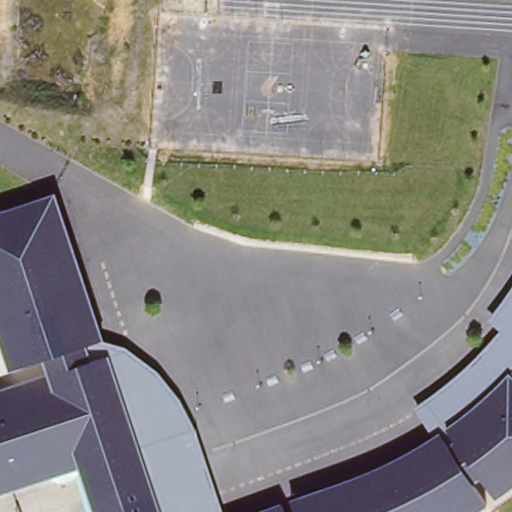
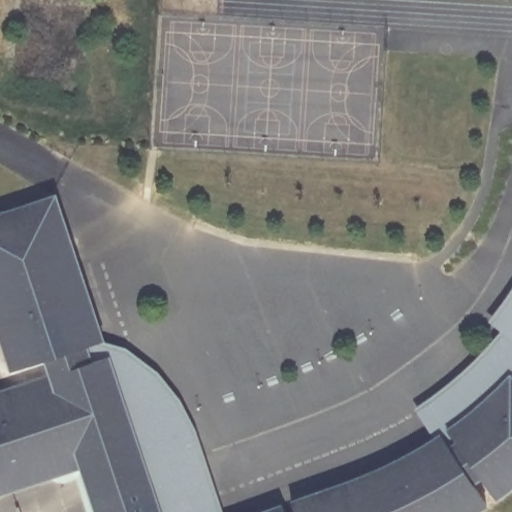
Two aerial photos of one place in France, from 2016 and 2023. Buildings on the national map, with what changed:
unchanged [(0,213),(55,195),(103,341),(123,348),(158,373),(180,402),(195,431),(223,512),(93,512),(79,470),(0,496),(0,390),(47,375),(42,360),(8,371),(0,347),(0,213)]
unchanged [(370,471),(407,453),(433,438),(412,409),(459,373),(499,332),(486,321),(512,286),(512,488),(496,500),(480,480),(472,486),(485,506),(476,512),(294,512),(289,500),(370,471)]
unchanged [(283,512),(260,512),(280,505),(283,512)]

